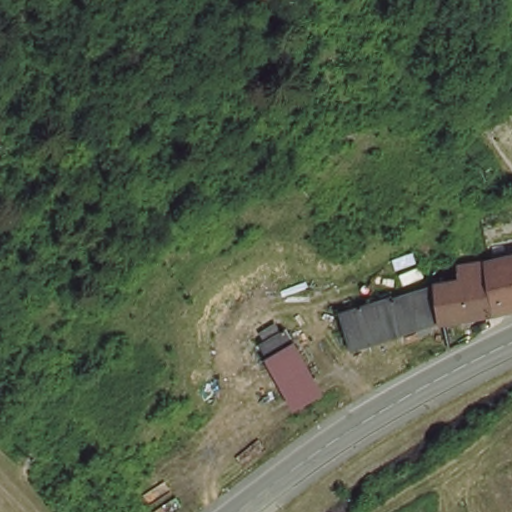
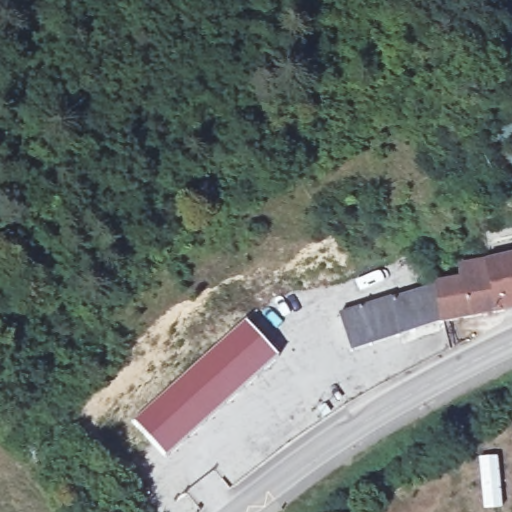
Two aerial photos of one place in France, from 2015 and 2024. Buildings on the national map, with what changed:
unchanged [(482,258),(512,253),(512,304),(495,308),(482,258)]
unchanged [(454,277),(451,265),(482,258),(495,308),(444,320),(439,321),(432,283),(454,277)]
unchanged [(346,351),(338,322),(335,310),(362,302),(382,296),(382,298),(432,283),(439,321),(407,331),(346,351)]
new [(245,316),(280,356),(165,457),(131,418),(245,316)]
demolished [(261,344),(285,331),(289,342),(297,336),(323,390),(289,406),(261,344)]

